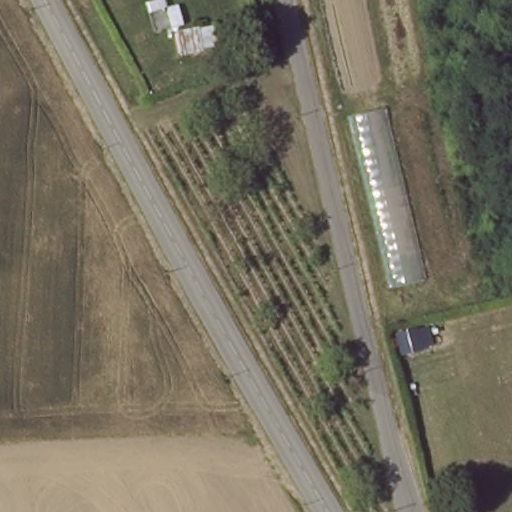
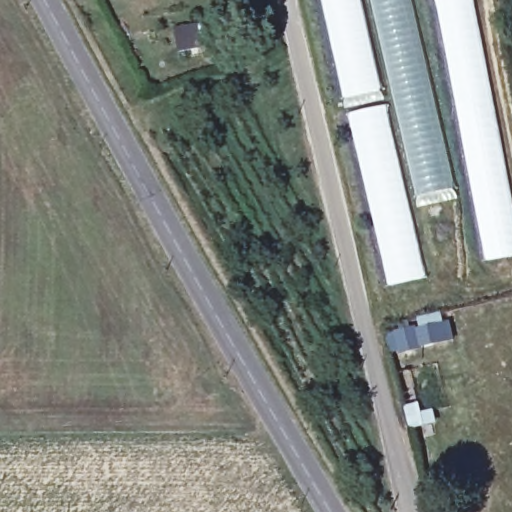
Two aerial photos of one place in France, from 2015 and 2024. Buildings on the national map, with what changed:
new [(344,100),(321,0),(363,0),(383,93),(344,100)]
new [(459,198),(418,207),(369,0),(413,0),(429,72),(459,198)]
new [(435,0),(475,0),(512,192),(512,257),(487,261),(435,0)]
unchanged [(171,28),(211,23),(217,46),(177,56),(171,28)]
unchanged [(424,280),(385,288),(349,116),(388,108),(424,280)]

